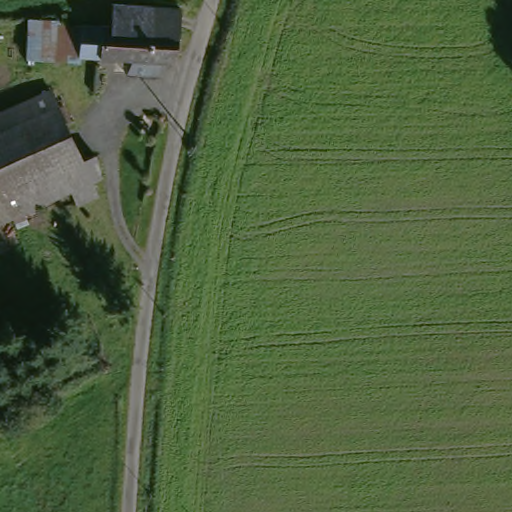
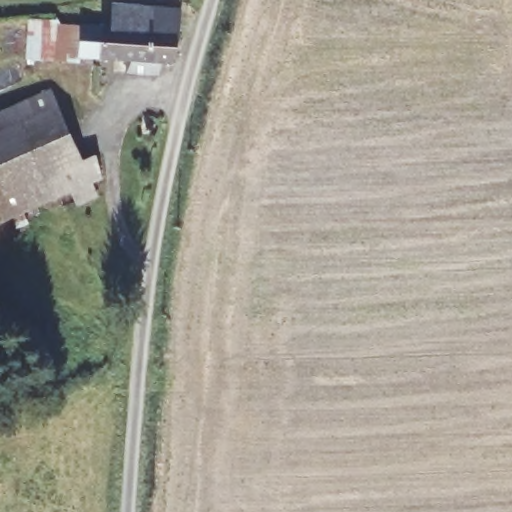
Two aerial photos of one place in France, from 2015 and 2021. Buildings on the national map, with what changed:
unchanged [(23,23),(95,29),(96,23),(109,24),(111,5),(177,13),(173,70),(95,62),(66,57),(66,66),(19,62),(23,23)]
unchanged [(68,142),(0,170),(0,114),(48,95),(68,142)]
unchanged [(96,169),(100,185),(63,196),(58,181),(0,204),(0,170),(68,142),(82,175),(96,169)]

